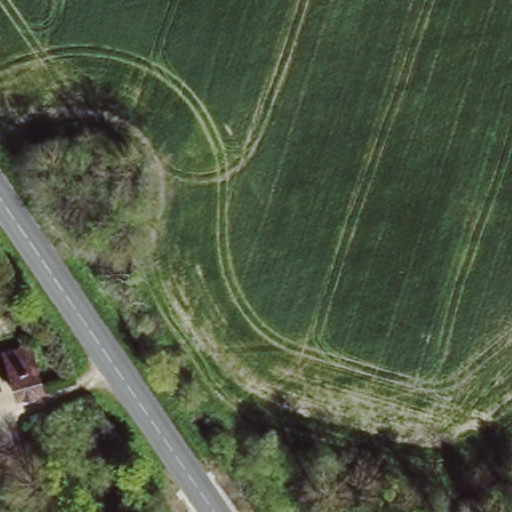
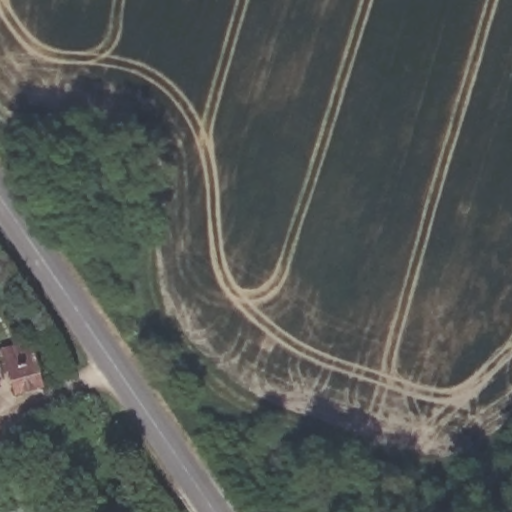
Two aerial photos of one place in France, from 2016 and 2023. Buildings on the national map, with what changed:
unchanged [(36,375),(10,381),(1,344),(0,345),(0,339),(25,332),(36,375)]

